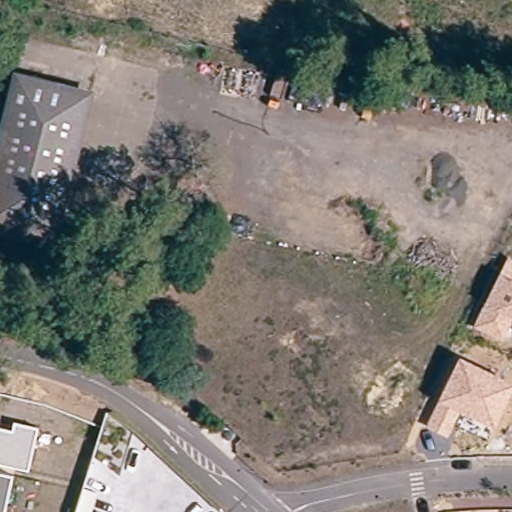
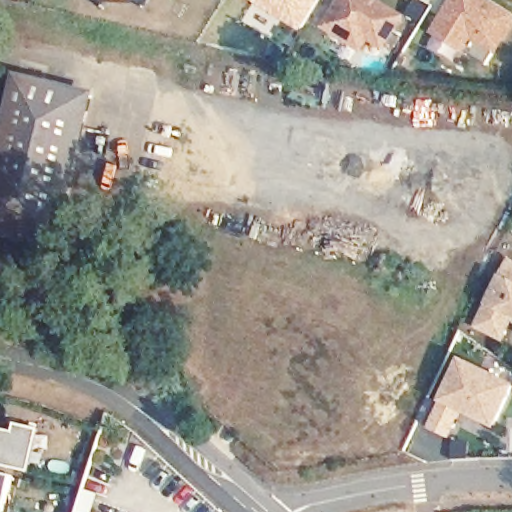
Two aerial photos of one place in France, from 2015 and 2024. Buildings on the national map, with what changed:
new [(106,0),(132,0),(131,1),(106,0)]
new [(251,0),(322,0),(303,31),(251,0)]
new [(339,0),(371,0),(399,18),(380,48),(365,38),(357,50),(321,27),(333,9),(336,4),(339,0)]
new [(489,0),(512,15),(512,27),(495,54),(473,41),(466,53),(434,32),(455,0),(489,0)]
unchanged [(17,76),(92,93),(55,247),(0,235),(0,148),(17,76)]
unchanged [(512,321),(503,339),(474,326),(509,255),(512,258),(512,321)]
unchanged [(512,392),(495,429),(461,411),(448,437),(427,426),(460,356),(512,382),(512,392)]
unchanged [(14,431),(15,423),(38,429),(29,470),(0,463),(0,428),(14,431)]
unchanged [(13,474),(8,502),(14,505),(12,512),(0,512),(0,472),(13,474)]

